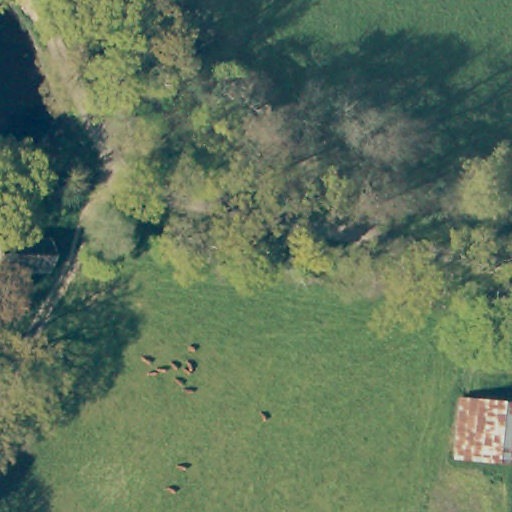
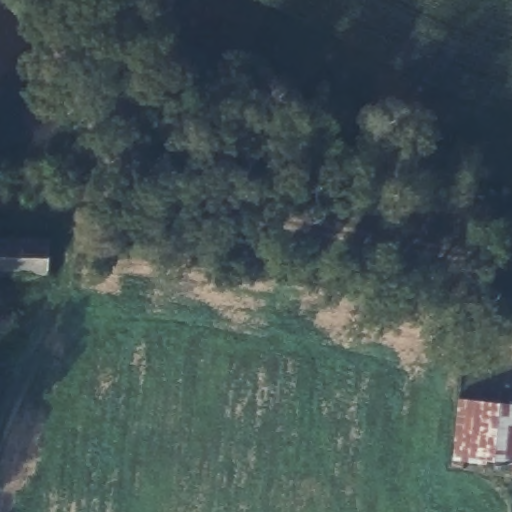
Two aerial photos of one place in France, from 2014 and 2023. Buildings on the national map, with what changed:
unchanged [(54,237),(56,254),(55,277),(22,279),(0,278),(0,237),(54,237)]
unchanged [(512,461),(511,471),(451,464),(460,399),(512,407),(512,461)]

